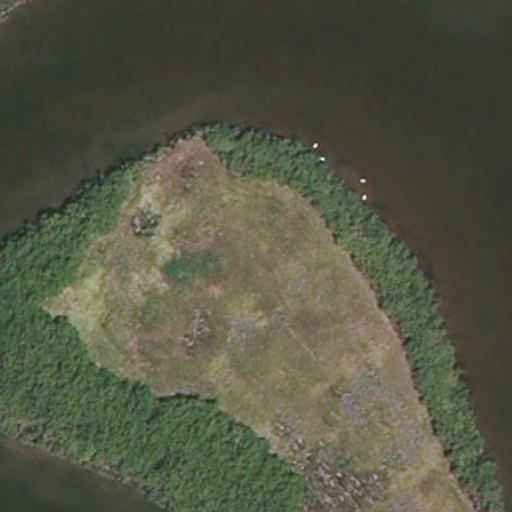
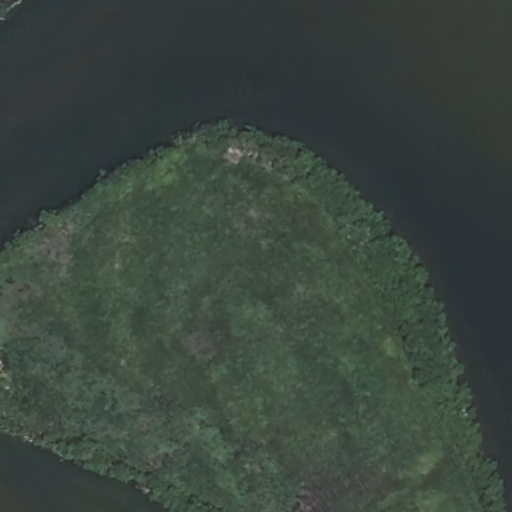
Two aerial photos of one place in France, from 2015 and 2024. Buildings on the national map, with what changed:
[]

